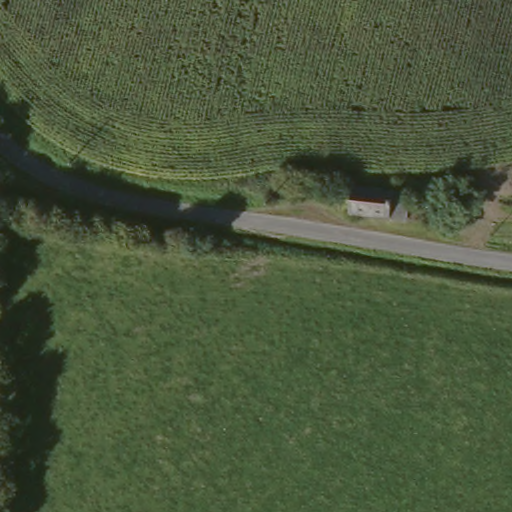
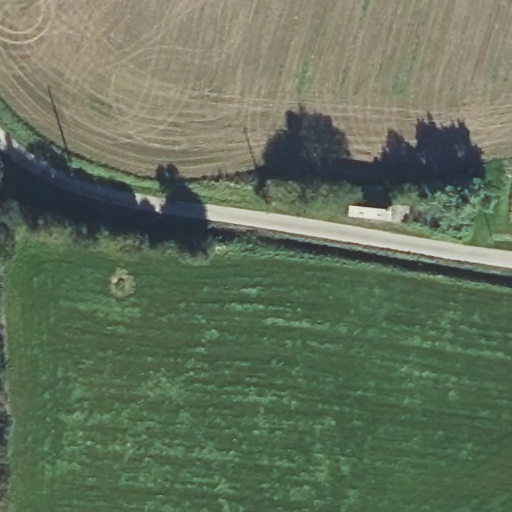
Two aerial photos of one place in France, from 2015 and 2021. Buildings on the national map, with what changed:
unchanged [(406,190),(403,219),(345,211),(347,182),(406,190)]

